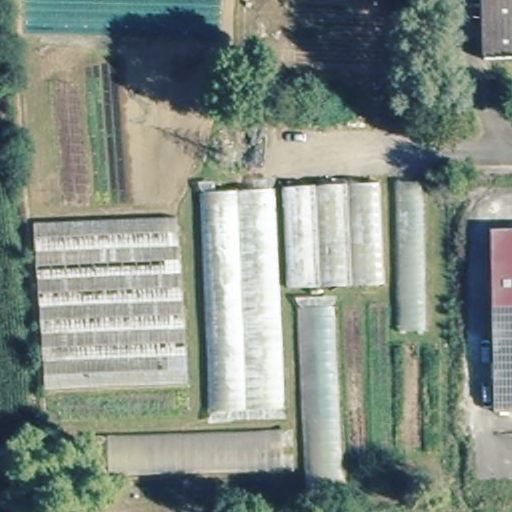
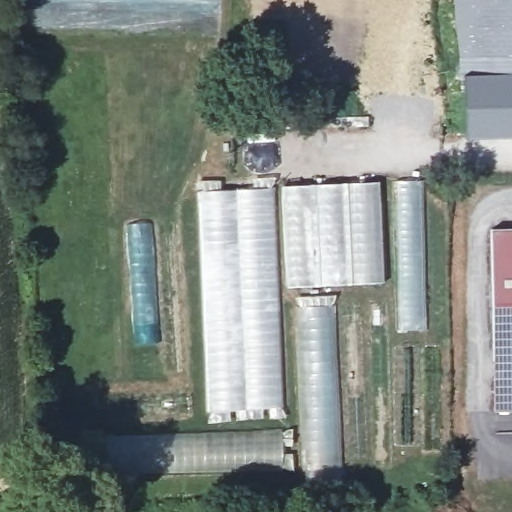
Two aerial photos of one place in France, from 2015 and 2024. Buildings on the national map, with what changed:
demolished [(247,81),(246,0),(289,0),(290,81),(247,81)]
new [(484,0),(487,54),(512,53),(512,139),(464,140),(463,78),(459,81),(452,0),(484,0)]
unchanged [(487,54),(484,0),(512,0),(512,53),(487,54)]
demolished [(87,201),(63,203),(56,85),(78,84),(87,201)]
unchanged [(396,183),(426,182),(429,333),(403,332),(396,183)]
unchanged [(210,420),(200,193),(383,185),(387,285),(281,291),(283,418),(210,420)]
demolished [(189,384),(45,392),(33,225),(178,218),(189,384)]
unchanged [(499,415),(491,230),(512,230),(512,415),(499,415)]
unchanged [(298,310),(335,308),(345,489),(308,492),(298,310)]
unchanged [(103,478),(102,436),(282,432),(284,474),(103,478)]

